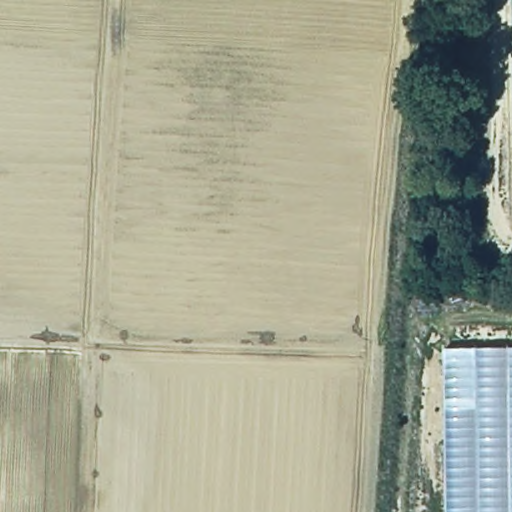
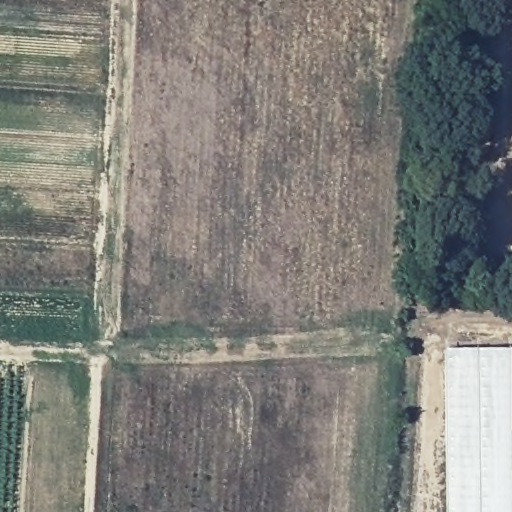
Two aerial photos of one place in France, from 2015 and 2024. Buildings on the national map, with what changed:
unchanged [(511,0),(512,0),(512,72),(511,0)]
unchanged [(512,325),(512,512),(442,512),(440,326),(512,325)]

